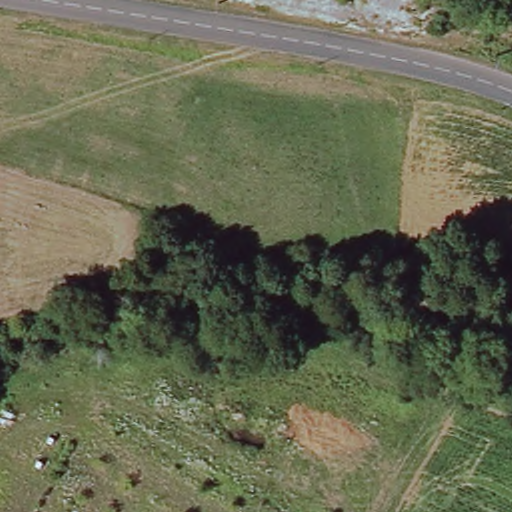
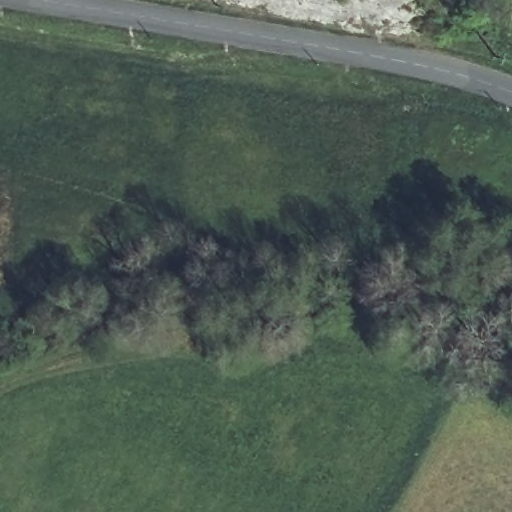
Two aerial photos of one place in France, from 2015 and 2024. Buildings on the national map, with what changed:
[]

